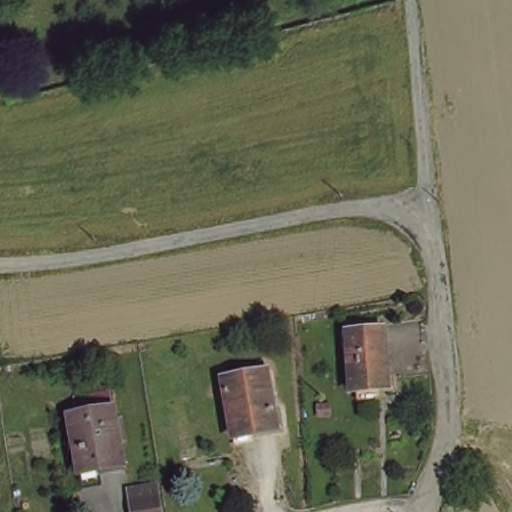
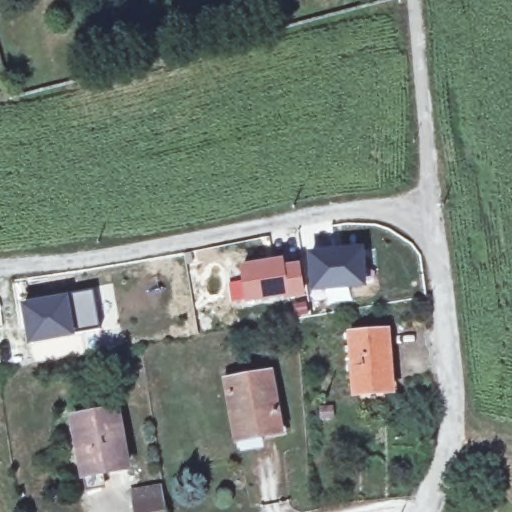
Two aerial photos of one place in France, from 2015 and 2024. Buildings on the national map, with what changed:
new [(310,293),(305,254),(362,247),(366,287),(310,293)]
new [(239,265),(282,259),(283,266),(299,263),(305,298),(284,301),(283,299),(245,304),(239,265)]
new [(20,304),(67,295),(92,291),(100,330),(74,334),(74,337),(27,346),(20,304)]
unchanged [(345,332),(383,331),(385,384),(347,386),(345,332)]
unchanged [(222,382),(267,375),(275,432),(234,440),(222,382)]
unchanged [(75,402),(110,396),(125,468),(78,478),(69,419),(79,418),(75,402)]
unchanged [(157,512),(131,512),(129,494),(155,491),(157,512)]

